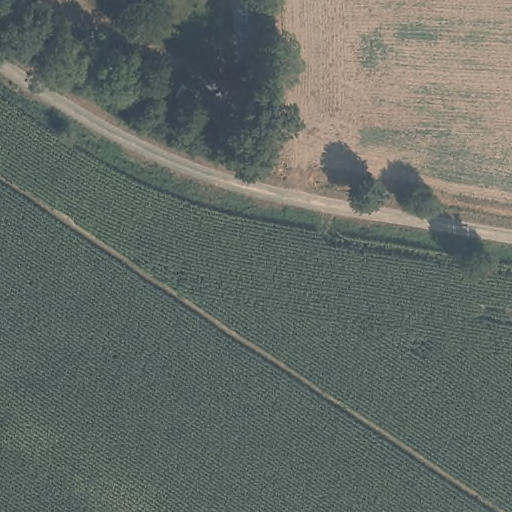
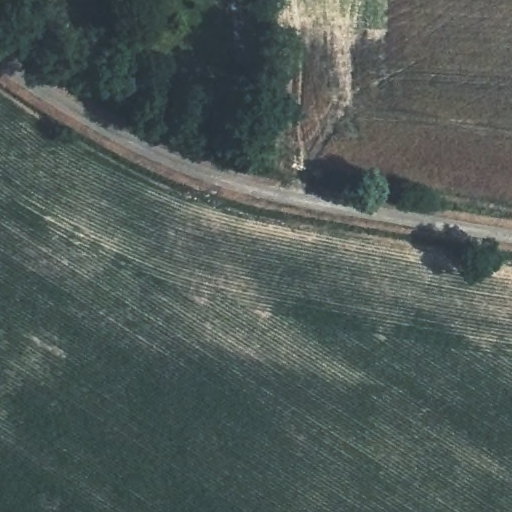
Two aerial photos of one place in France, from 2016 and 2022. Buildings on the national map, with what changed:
[]

